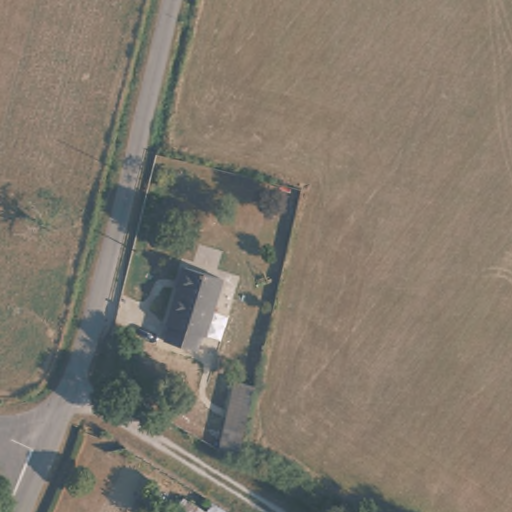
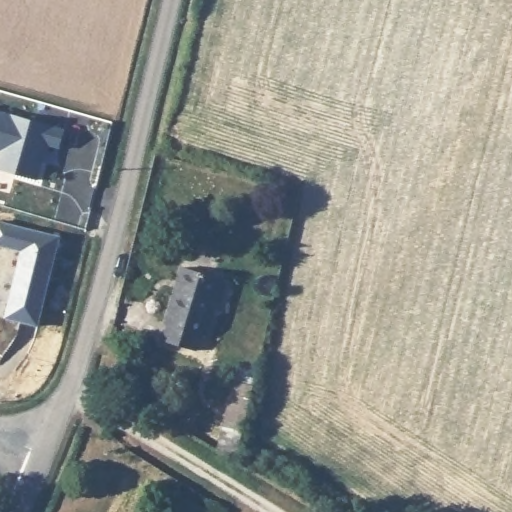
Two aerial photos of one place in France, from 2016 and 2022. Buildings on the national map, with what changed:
new [(60,149),(48,145),(38,180),(0,170),(0,155),(1,152),(0,152),(0,111),(65,130),(60,149)]
new [(38,327),(6,318),(22,252),(0,246),(0,222),(60,237),(38,327)]
unchanged [(162,343),(169,325),(165,324),(185,264),(222,276),(202,339),(199,338),(194,354),(162,343)]
unchanged [(217,448),(224,425),(237,379),(247,382),(257,386),(244,432),(237,455),(217,448)]

